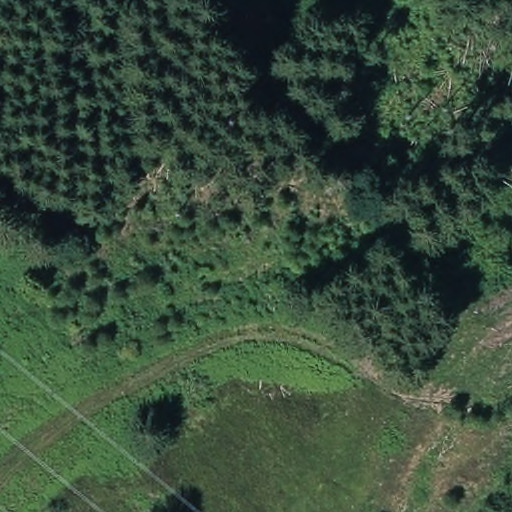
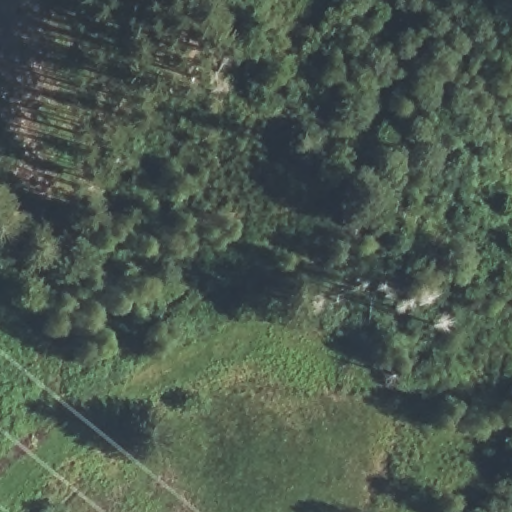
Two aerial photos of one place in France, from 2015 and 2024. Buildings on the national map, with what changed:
[]

